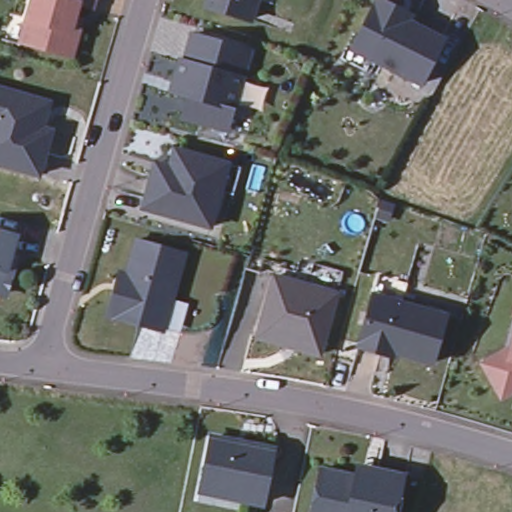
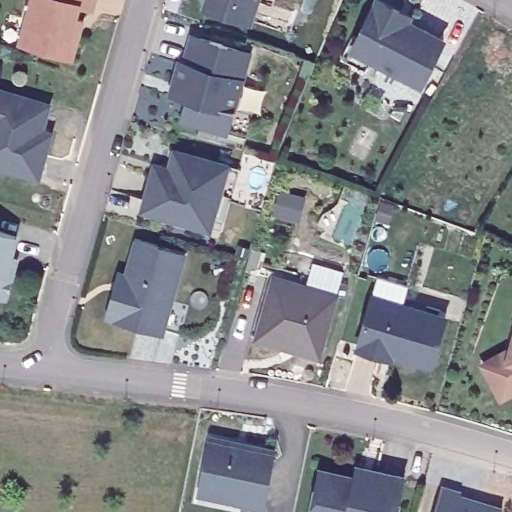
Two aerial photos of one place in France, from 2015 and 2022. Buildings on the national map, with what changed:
unchanged [(73,28),(73,30),(66,53),(16,39),(23,14),(27,0),(88,0),(86,6),(73,2),(69,14),(76,17),(73,28)]
unchanged [(249,17),(206,3),(207,0),(255,0),(249,17)]
unchanged [(409,13),(406,21),(443,39),(422,82),(372,58),(366,71),(346,61),(377,0),(380,0),(409,13)]
unchanged [(243,139),(223,133),(178,120),(183,100),(166,95),(174,63),(181,65),(188,39),(244,57),(229,112),(248,117),(243,139)]
unchanged [(31,124),(32,127),(40,129),(28,172),(0,164),(0,88),(38,100),(31,124)]
unchanged [(234,171),(228,198),(215,194),(205,230),(138,211),(148,174),(150,166),(160,168),(165,150),(170,152),(223,167),(234,171)]
unchanged [(5,288),(0,290),(0,231),(13,234),(8,254),(13,256),(8,276),(5,288)]
unchanged [(176,335),(158,330),(158,333),(103,317),(114,274),(123,276),(133,242),(178,255),(166,301),(183,306),(176,335)]
unchanged [(332,295),(316,355),(253,338),(269,278),(332,295)]
unchanged [(376,355),(354,349),(369,298),(441,318),(428,365),(389,354),(389,359),(376,355)]
unchanged [(511,316),(512,312),(512,316),(511,316)]
unchanged [(497,399),(479,366),(507,350),(512,332),(512,391),(497,399)]
unchanged [(269,447),(259,500),(239,497),(238,506),(196,498),(208,436),(269,447)]
unchanged [(348,479),(349,468),(368,471),(394,478),(387,512),(305,512),(313,471),(348,479)]
new [(461,499),(500,512),(435,512),(441,485),(463,491),(461,499)]

